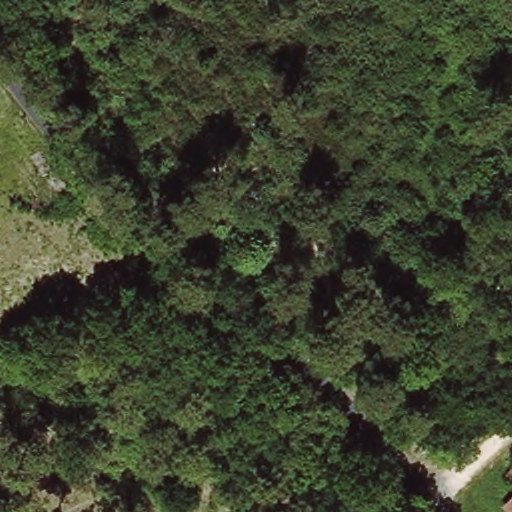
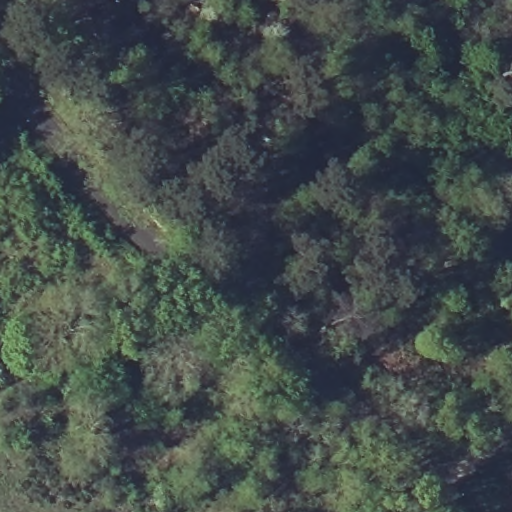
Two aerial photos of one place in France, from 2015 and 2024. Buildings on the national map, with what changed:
unchanged [(506,477),(512,468),(512,481),(506,477)]
unchanged [(502,508),(512,496),(512,512),(508,512),(502,508)]

